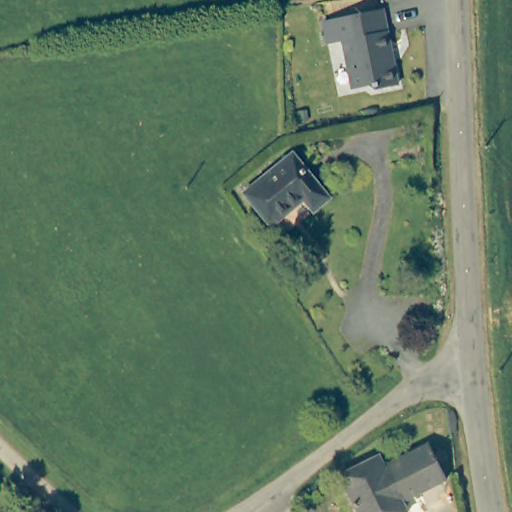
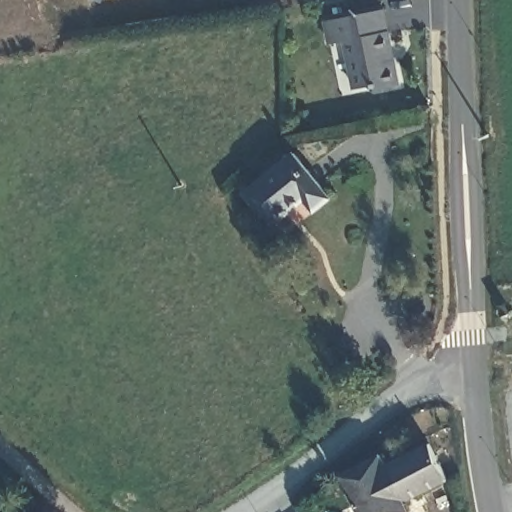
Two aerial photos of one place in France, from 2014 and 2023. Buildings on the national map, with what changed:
unchanged [(390,54),(386,55),(388,64),(392,67),(396,88),(373,92),(368,89),(352,92),(343,44),(328,46),(323,22),(382,12),(390,54)]
unchanged [(247,190),(294,154),(330,201),(313,212),(305,202),(274,226),(247,190)]
unchanged [(378,455),(384,467),(433,443),(450,478),(401,502),(406,512),(363,512),(343,471),(378,455)]

